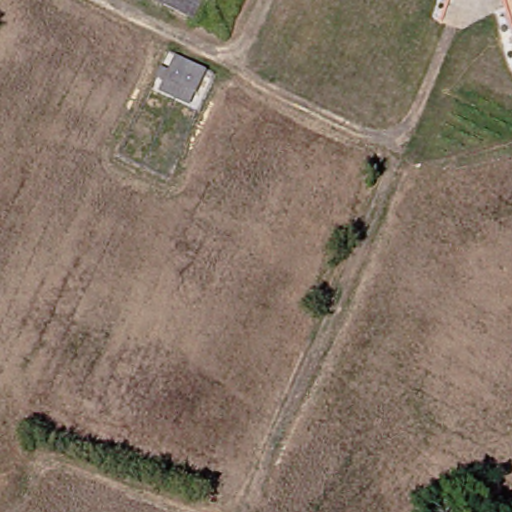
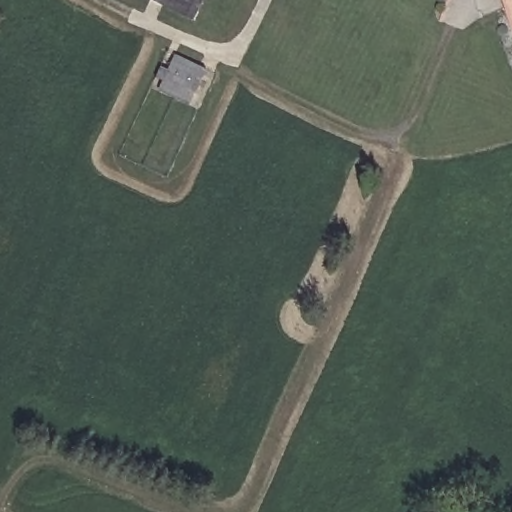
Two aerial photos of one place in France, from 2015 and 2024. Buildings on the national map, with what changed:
unchanged [(198,18),(162,0),(208,0),(198,18)]
unchanged [(207,74),(197,97),(165,82),(175,59),(207,74)]

